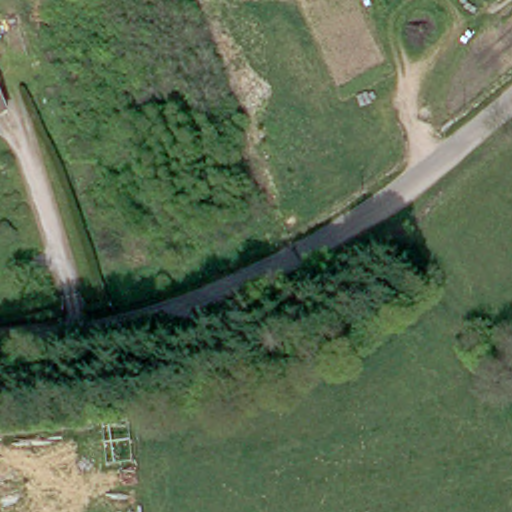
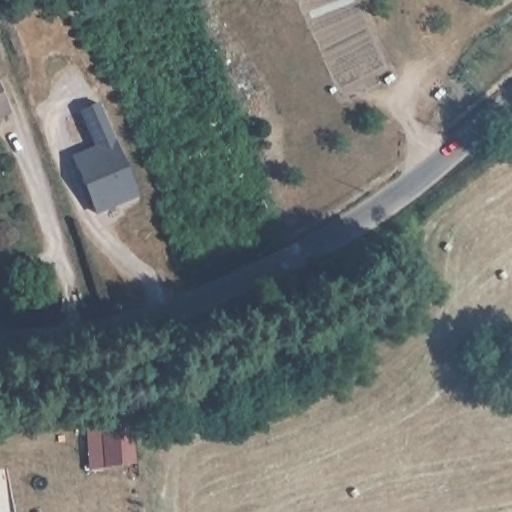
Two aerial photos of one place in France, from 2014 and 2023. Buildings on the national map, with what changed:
unchanged [(1,29),(0,29),(0,27),(1,29)]
unchanged [(2,65),(0,66),(0,60),(2,65)]
unchanged [(15,106),(0,112),(0,74),(15,106)]
new [(80,111),(100,103),(139,197),(96,214),(72,155),(94,146),(80,111)]
new [(130,422),(135,463),(89,470),(85,429),(130,422)]

